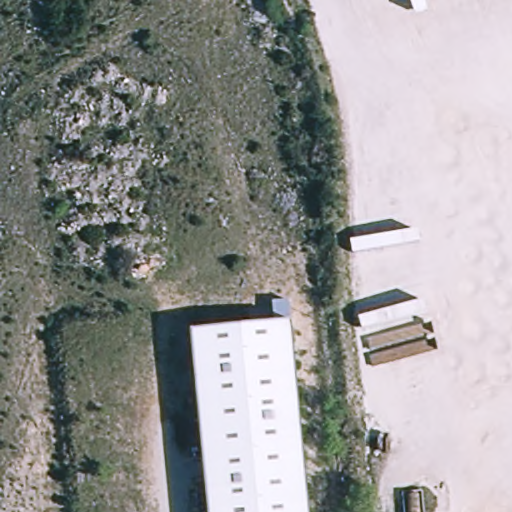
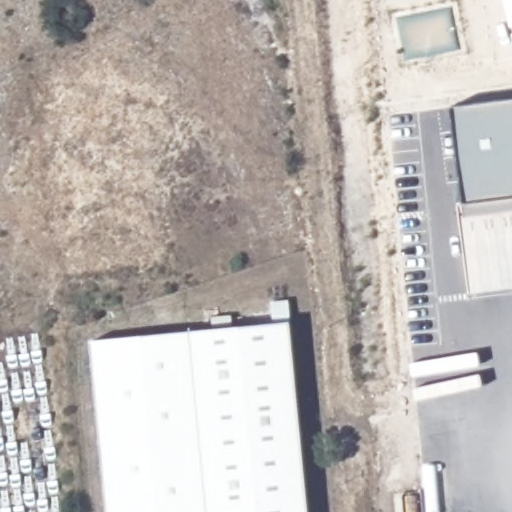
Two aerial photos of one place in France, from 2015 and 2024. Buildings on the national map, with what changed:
new [(465,204),(452,106),(512,99),(512,199),(465,204)]
unchanged [(311,512),(210,512),(192,330),(292,320),(311,512)]
new [(210,512),(110,512),(93,344),(192,334),(210,512)]
unchanged [(422,486),(425,512),(403,512),(401,489),(422,486)]

